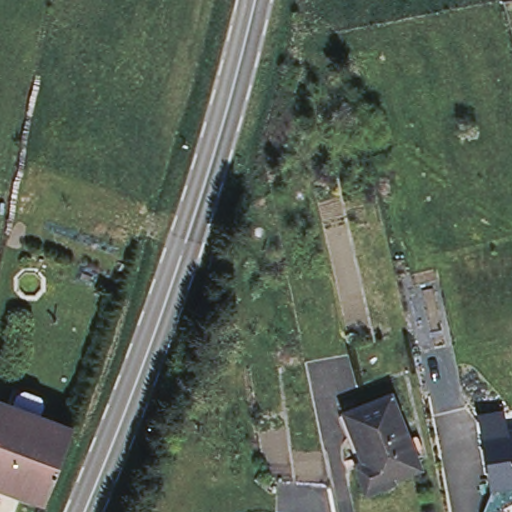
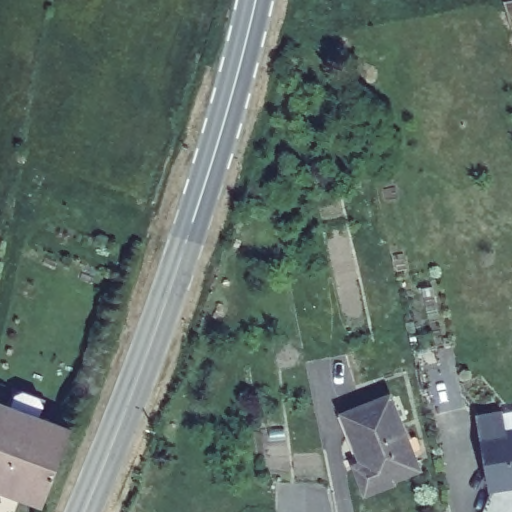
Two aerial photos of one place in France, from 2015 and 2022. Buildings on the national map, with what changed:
unchanged [(7,411),(14,393),(42,403),(35,421),(68,434),(40,510),(0,494),(0,409),(7,411)]
unchanged [(365,463),(356,437),(353,439),(343,415),(390,397),(418,470),(364,491),(355,467),(365,463)]
unchanged [(489,485),(481,437),(479,417),(485,416),(512,412),(512,486),(500,488),(490,490),(489,485)]

